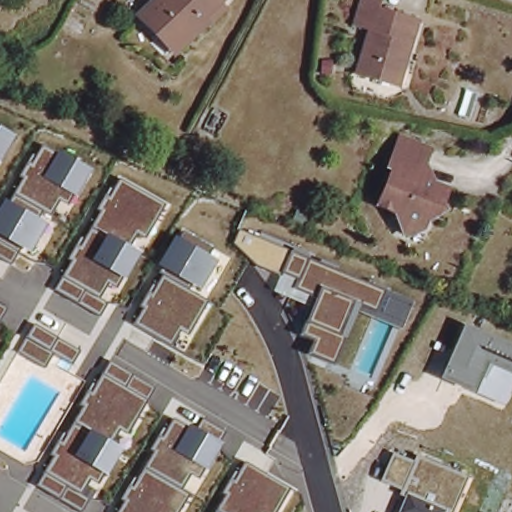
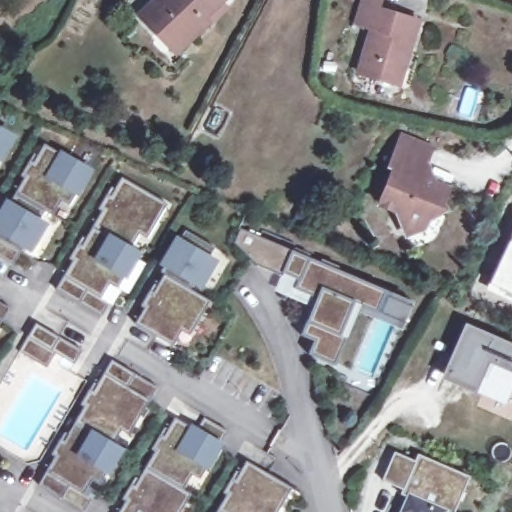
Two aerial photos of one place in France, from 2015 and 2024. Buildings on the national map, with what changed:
unchanged [(160,35),(139,13),(151,2),(157,7),(164,0),(219,0),(225,6),(209,22),(205,19),(181,42),(174,49),(160,35)]
unchanged [(392,82),(357,71),(370,27),(355,22),(363,0),(380,0),(377,8),(417,20),(407,51),(396,83),(392,82)]
unchanged [(430,137),(419,168),(445,179),(436,204),(430,202),(423,219),(407,225),(397,202),(378,194),(392,157),(387,155),(398,125),(430,137)]
unchanged [(15,137),(0,162),(0,129),(15,137)]
unchanged [(58,154),(60,150),(90,170),(75,195),(69,206),(60,201),(52,216),(43,212),(38,218),(44,222),(27,252),(19,248),(10,263),(0,259),(0,209),(5,200),(10,202),(44,144),(58,154)]
unchanged [(167,204),(149,239),(137,234),(130,246),(142,253),(125,279),(120,289),(108,283),(100,297),(108,301),(100,316),(56,290),(72,263),(69,259),(81,237),(87,240),(101,214),(96,211),(107,191),(112,194),(120,178),(167,204)]
unchanged [(401,332),(356,313),(335,366),(308,355),(314,340),(301,335),(312,307),(273,290),(279,276),(255,266),(234,243),(240,228),(412,302),(401,332)]
unchanged [(210,246),(206,253),(214,258),(197,287),(192,292),(206,300),(187,334),(177,329),(168,344),(132,323),(140,308),(135,305),(159,265),(155,263),(171,234),(177,236),(180,229),(210,246)]
new [(512,232),(512,300),(486,288),(512,232)]
unchanged [(8,308),(1,321),(0,323),(0,303),(8,308)]
unchanged [(512,343),(512,391),(505,404),(475,393),(439,377),(464,322),(512,343)]
unchanged [(27,337),(35,324),(57,337),(80,352),(73,366),(54,354),(45,367),(19,352),(27,337)]
unchanged [(155,387),(147,401),(127,434),(120,446),(105,474),(100,484),(90,481),(83,495),(91,500),(83,512),(82,512),(62,500),(37,487),(54,458),(50,456),(65,430),(71,432),(85,407),(79,404),(92,382),(97,384),(110,361),(133,374),(155,387)]
unchanged [(202,417),(226,431),(219,441),(203,469),(198,479),(189,475),(182,489),(189,493),(178,512),(121,512),(126,502),(120,498),(134,474),(140,476),(154,453),(149,450),(162,426),(167,428),(174,418),(195,429),(202,417)]
unchanged [(417,455),(468,477),(452,512),(400,512),(406,497),(399,495),(402,489),(381,482),(392,452),(414,462),(417,455)]
unchanged [(277,512),(215,512),(226,495),(222,492),(235,471),(240,473),(246,461),(290,489),(277,512)]

